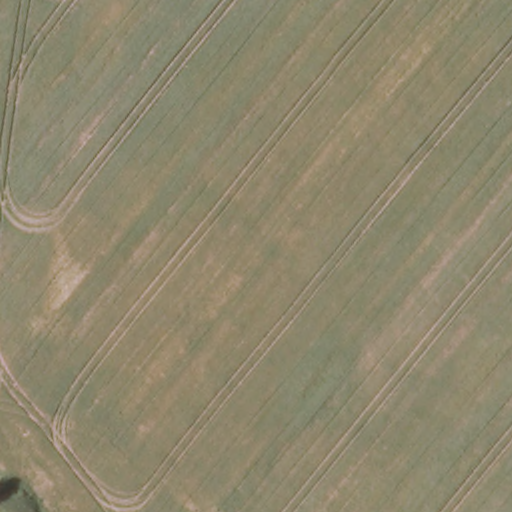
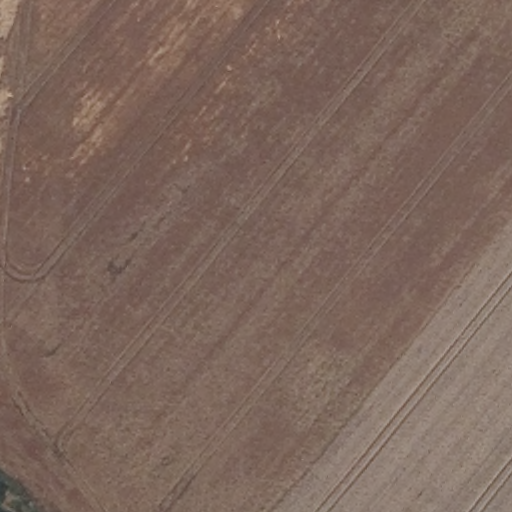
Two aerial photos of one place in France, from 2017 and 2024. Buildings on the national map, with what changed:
[]

